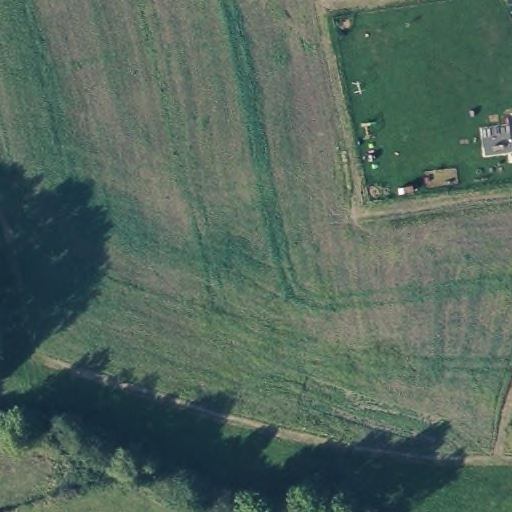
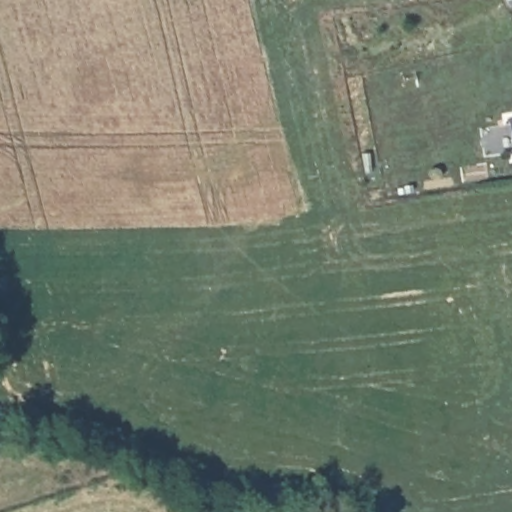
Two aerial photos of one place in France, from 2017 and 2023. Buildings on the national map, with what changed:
unchanged [(512,116),(512,139),(509,116),(512,116)]

